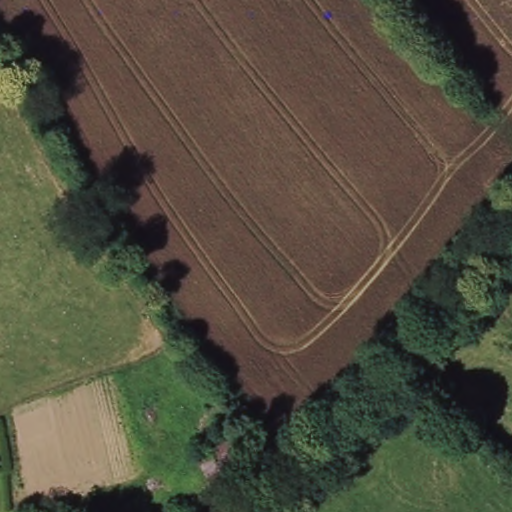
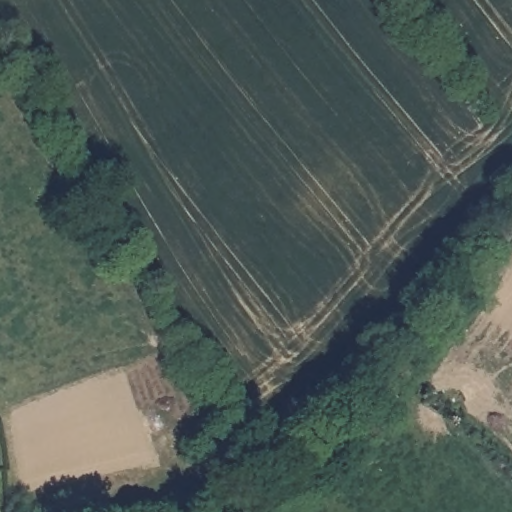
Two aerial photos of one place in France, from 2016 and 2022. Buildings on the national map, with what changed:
unchanged [(217,424),(228,450),(192,465),(182,439),(217,424)]

